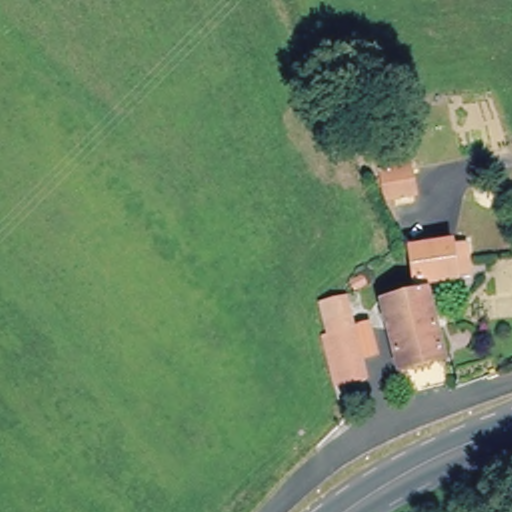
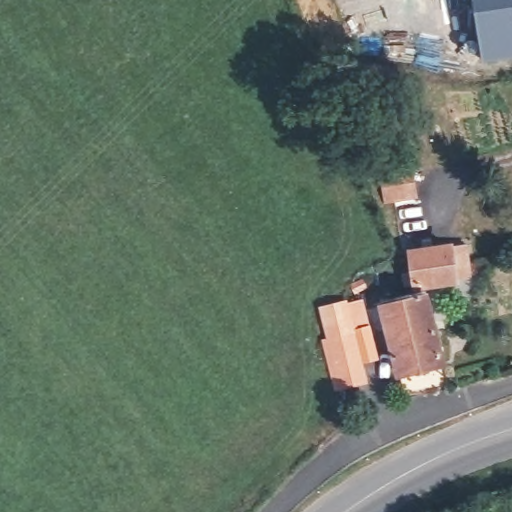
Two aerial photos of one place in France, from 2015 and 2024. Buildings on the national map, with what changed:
new [(512,60),(483,65),(476,29),(472,0),(512,0),(512,60)]
unchanged [(385,204),(378,177),(405,170),(411,196),(385,204)]
unchanged [(412,263),(415,263),(432,259),(463,252),(467,282),(422,291),(416,292),(412,263)]
unchanged [(365,342),(369,368),(340,372),(336,350),(333,330),(332,325),(332,323),(330,316),(340,298),(346,286),(347,293),(348,295),(349,300),(354,320),(371,317),(376,339),(365,342)]
unchanged [(383,314),(426,304),(442,368),(398,378),(383,314)]

